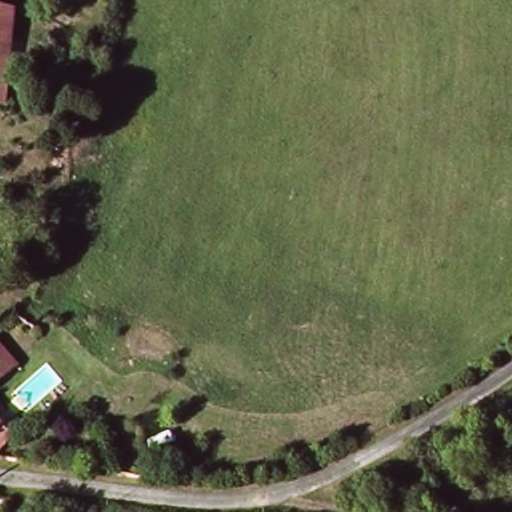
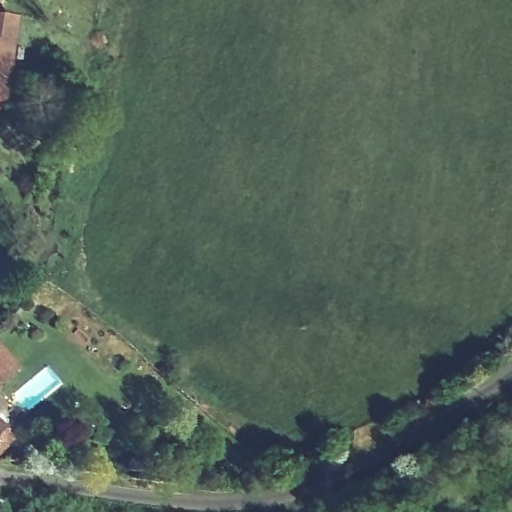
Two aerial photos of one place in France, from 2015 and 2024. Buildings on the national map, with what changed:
unchanged [(13,12),(2,110),(0,110),(0,11),(13,12)]
unchanged [(20,367),(0,386),(0,342),(20,367)]
unchanged [(11,440),(0,451),(0,427),(11,440)]

